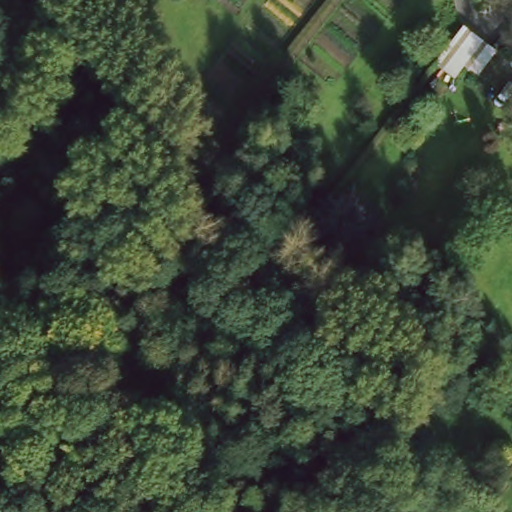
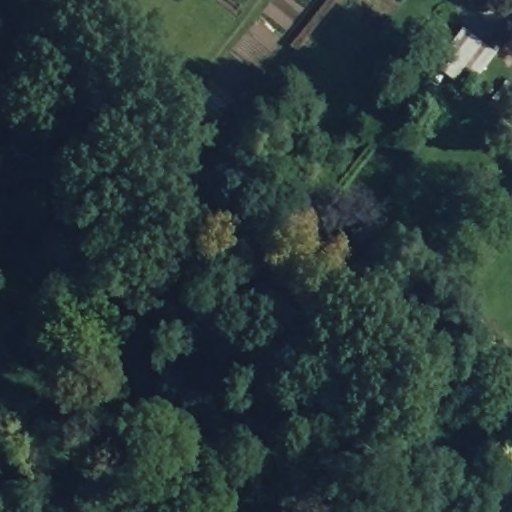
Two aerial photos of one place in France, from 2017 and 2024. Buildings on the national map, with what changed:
unchanged [(498,53),(481,75),(467,67),(457,79),(438,63),(465,26),(498,53)]

